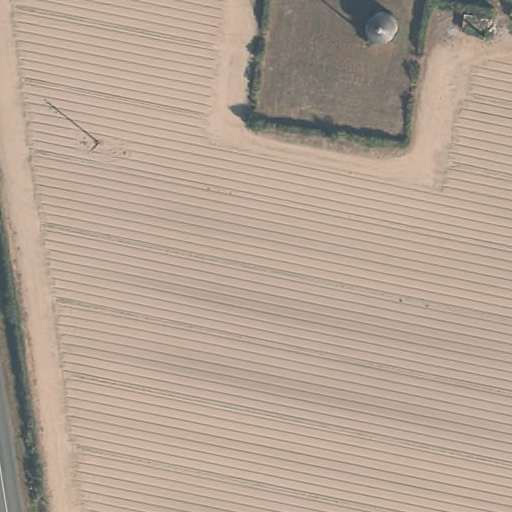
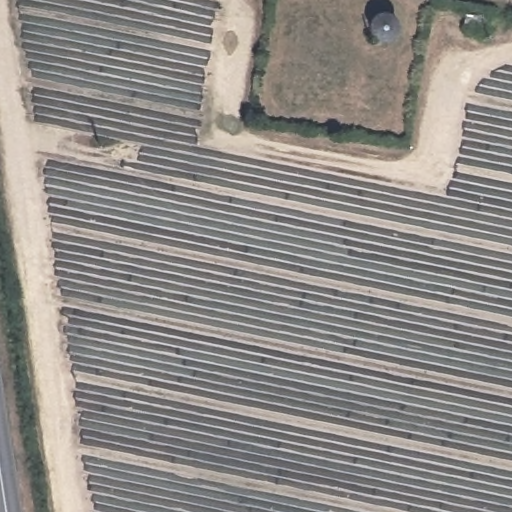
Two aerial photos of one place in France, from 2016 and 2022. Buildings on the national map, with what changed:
unchanged [(498,12),(497,32),(463,29),(465,9),(498,12)]

